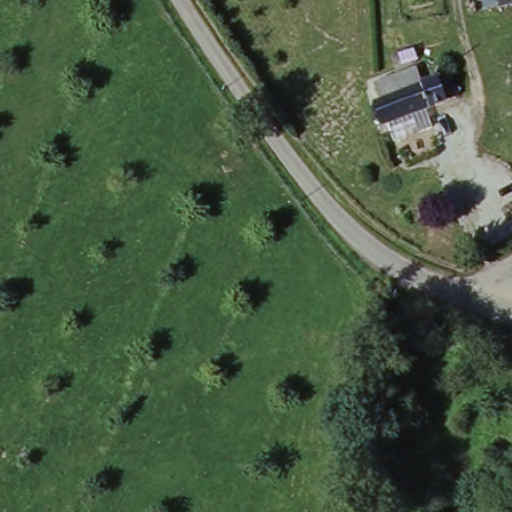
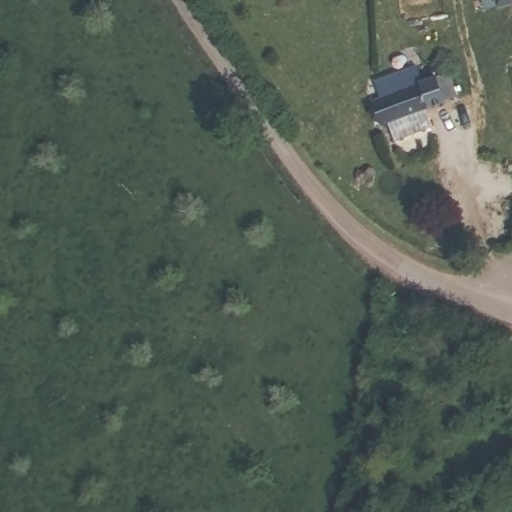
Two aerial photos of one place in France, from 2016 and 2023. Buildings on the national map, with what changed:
unchanged [(512,10),(476,18),(473,4),(483,1),(483,0),(512,0),(512,10)]
unchanged [(414,70),(418,84),(448,75),(459,103),(378,129),(370,102),(382,98),(375,82),(414,70)]

